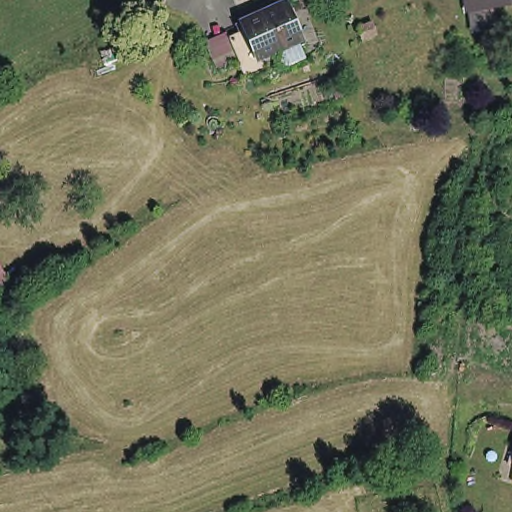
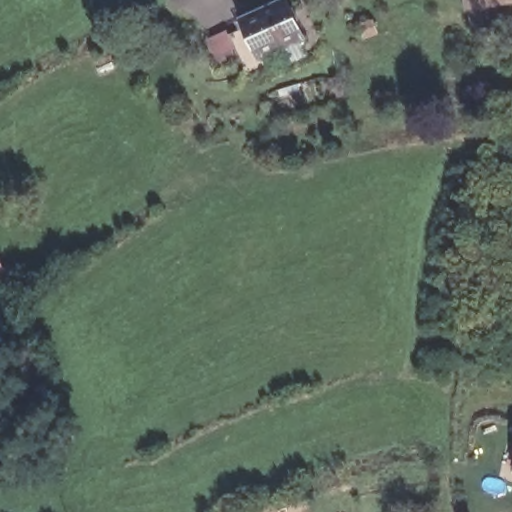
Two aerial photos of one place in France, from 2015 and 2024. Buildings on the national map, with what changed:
unchanged [(257,16),(290,0),(301,0),(316,34),(275,52),(280,62),(263,71),(255,55),(232,64),(222,40),(244,30),(245,34),(262,26),(257,16)]
unchanged [(473,14),(471,0),(512,0),(512,8),(473,14)]
unchanged [(0,294),(0,281),(5,292),(0,294)]

